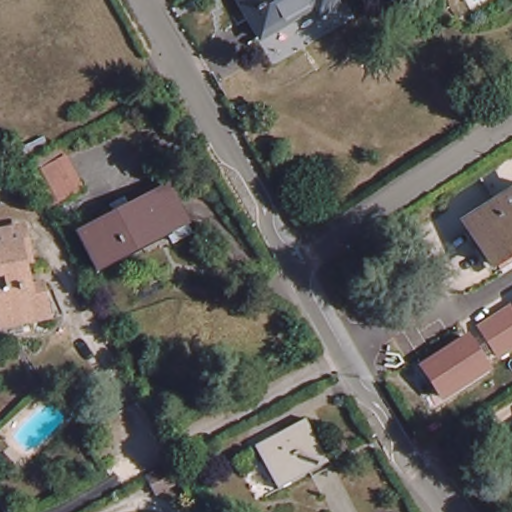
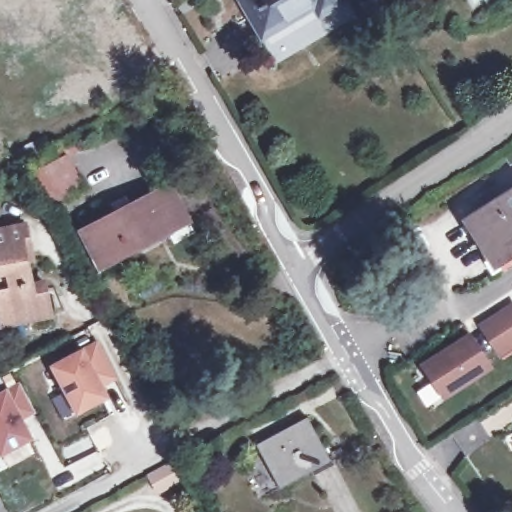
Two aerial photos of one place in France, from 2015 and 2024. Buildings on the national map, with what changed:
unchanged [(315,14),(310,6),(258,36),(236,0),(336,0),(336,2),(315,14)]
unchanged [(43,169),(67,156),(84,189),(59,202),(43,169)]
unchanged [(177,242),(171,231),(102,267),(83,231),(168,187),(184,217),(193,233),(177,242)]
unchanged [(512,193),(512,255),(496,266),(467,222),(512,193)]
unchanged [(38,266),(32,267),(37,290),(48,288),(55,321),(7,330),(4,316),(0,317),(0,237),(30,231),(38,266)]
unchanged [(443,401),(419,365),(468,334),(472,339),(481,333),(476,326),(512,302),(512,350),(499,360),(492,351),(484,357),(493,370),(443,401)]
new [(102,386),(109,398),(75,416),(49,366),(84,349),(98,342),(116,379),(102,386)]
new [(34,440),(0,458),(0,394),(8,390),(18,383),(35,414),(23,419),(34,440)]
unchanged [(308,418),(331,462),(281,488),(256,445),(308,418)]
unchanged [(149,475),(157,471),(172,463),(181,481),(158,493),(149,475)]

